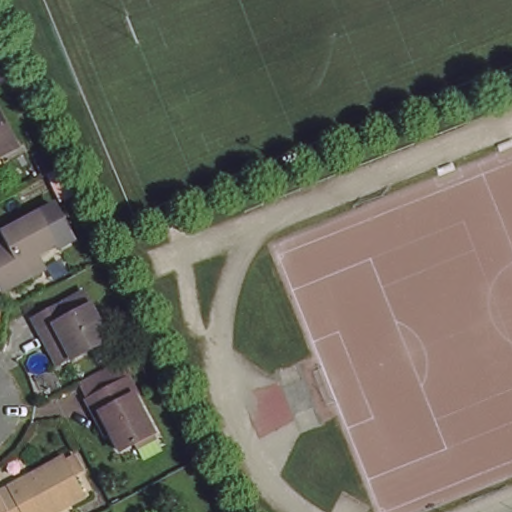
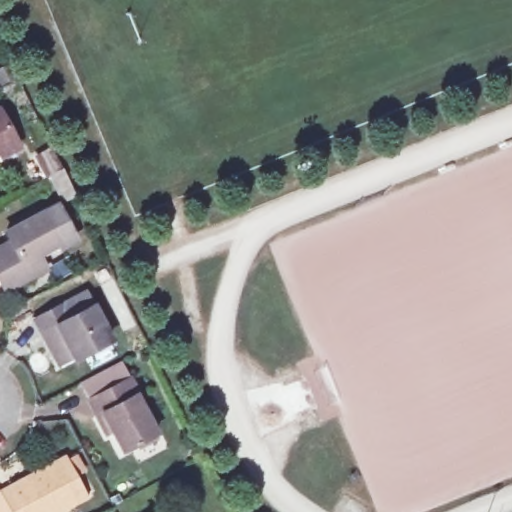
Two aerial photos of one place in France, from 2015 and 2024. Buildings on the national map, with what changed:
unchanged [(16,141),(0,148),(0,109),(16,141)]
unchanged [(34,270),(17,279),(15,273),(0,281),(0,232),(35,216),(50,209),(65,242),(49,248),(47,244),(28,252),(34,270)]
unchanged [(69,320),(91,309),(108,341),(75,361),(73,357),(59,365),(36,322),(62,308),(69,320)]
unchanged [(137,383),(137,389),(155,423),(121,441),(101,404),(95,407),(87,391),(129,368),(137,383)]
unchanged [(54,512),(20,512),(8,490),(59,462),(80,499),(54,512)]
unchanged [(6,512),(0,512),(0,500),(6,512)]

